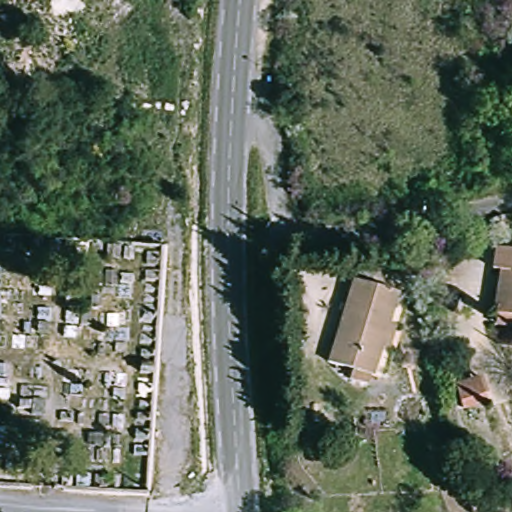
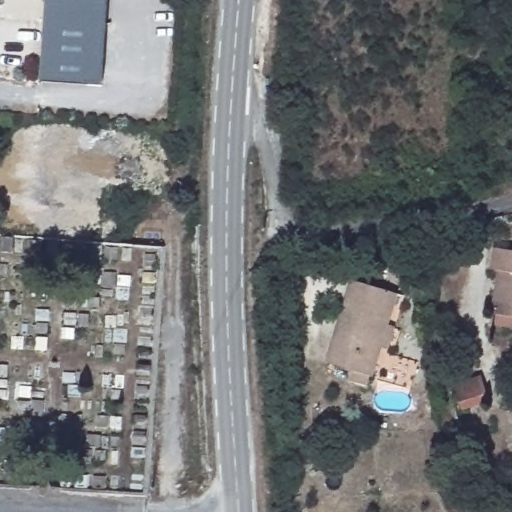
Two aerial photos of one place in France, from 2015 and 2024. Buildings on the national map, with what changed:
new [(106,0),(101,71),(40,66),(45,0),(106,0)]
unchanged [(495,325),(497,314),(493,314),(499,270),(491,269),(494,247),(512,250),(512,328),(495,325)]
unchanged [(353,280),(396,293),(371,376),(370,375),(367,385),(348,379),(351,370),(328,363),(353,280)]
unchanged [(287,316),(287,296),(299,296),(299,316),(287,316)]
unchanged [(487,401),(462,409),(454,384),(479,377),(487,401)]

